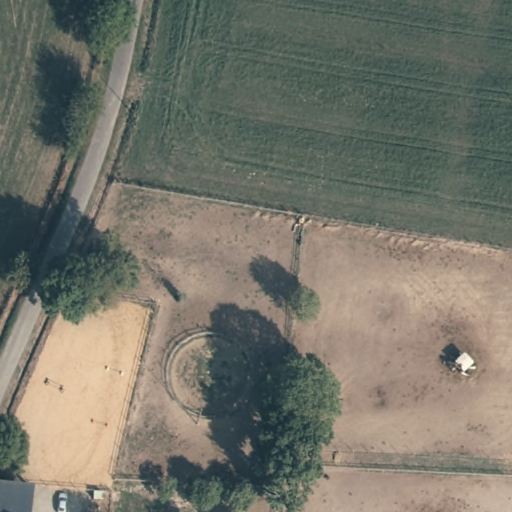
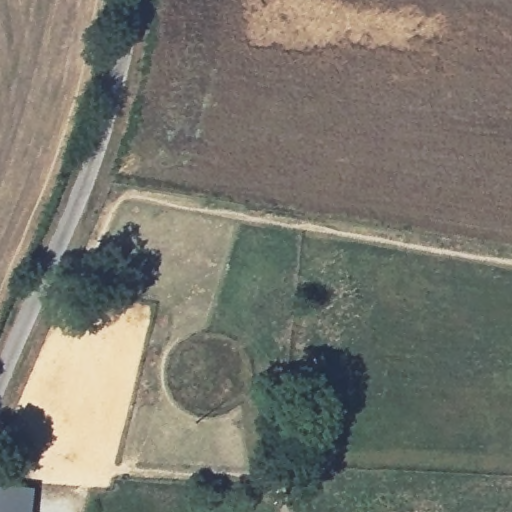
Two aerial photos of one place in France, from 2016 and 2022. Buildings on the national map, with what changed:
unchanged [(35,479),(32,512),(0,512),(0,477),(35,479)]

